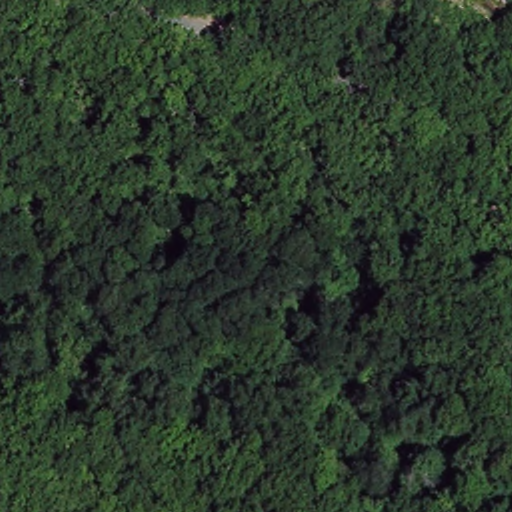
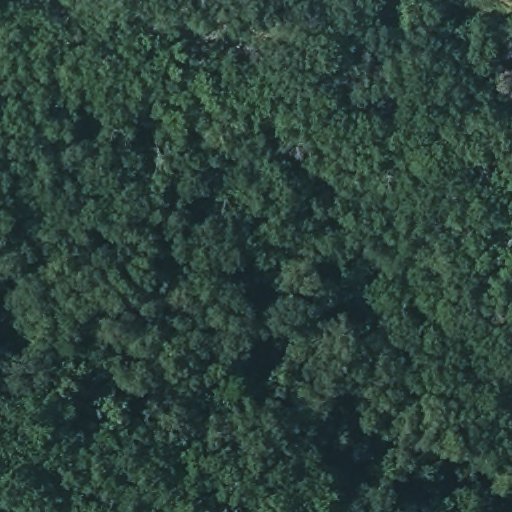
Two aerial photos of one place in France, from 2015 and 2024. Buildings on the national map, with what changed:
[]

